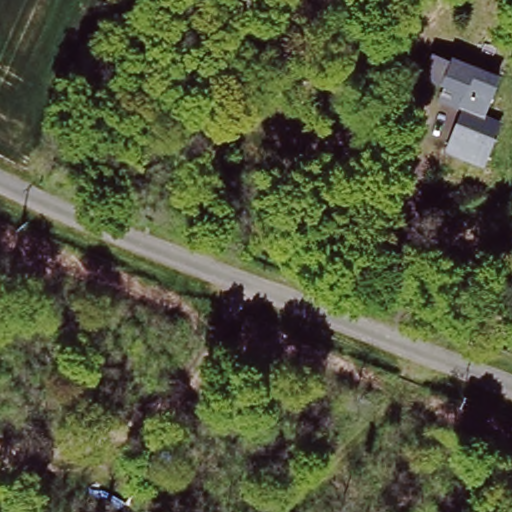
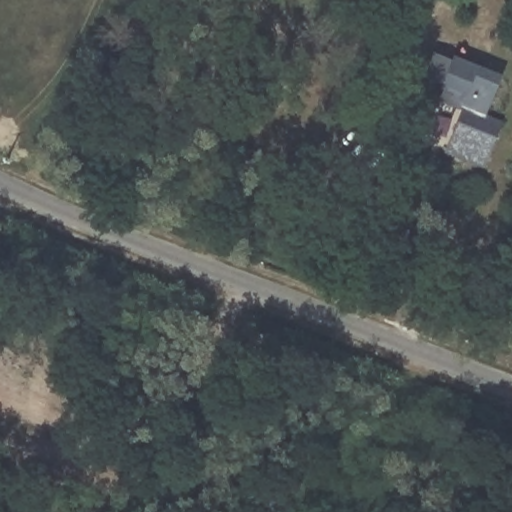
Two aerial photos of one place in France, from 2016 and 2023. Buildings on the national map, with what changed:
unchanged [(442,101),(451,84),(433,74),(443,57),(477,76),(469,92),(495,107),(485,125),(500,132),(487,157),(454,139),(467,115),(442,101)]

